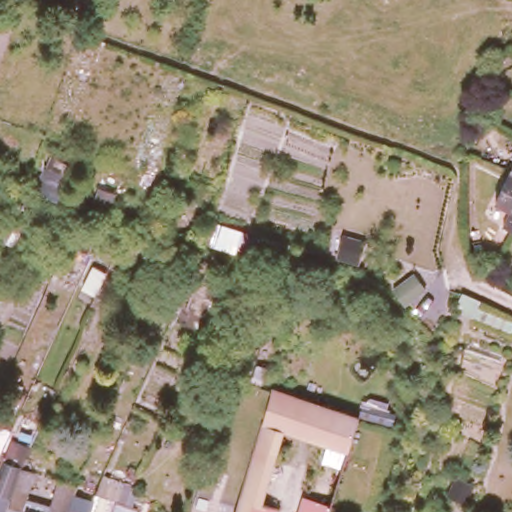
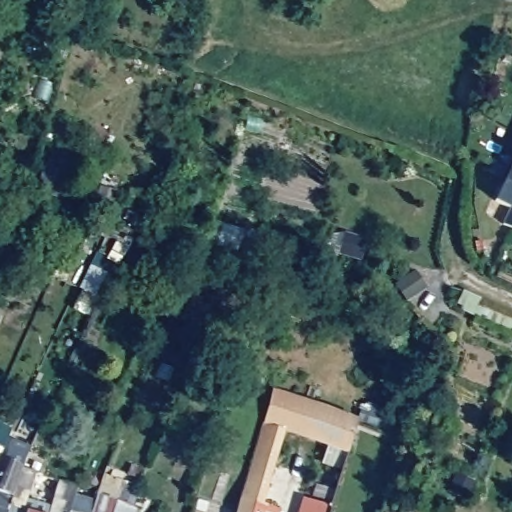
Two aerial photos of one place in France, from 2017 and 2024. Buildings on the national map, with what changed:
unchanged [(309,178),(299,175),(302,167),(312,170),(309,178)]
unchanged [(497,202),(512,171),(512,172),(512,209),(497,202)]
unchanged [(505,226),(512,211),(512,229),(505,226)]
unchanged [(142,230),(130,226),(134,217),(145,221),(142,230)]
unchanged [(150,277),(158,257),(139,250),(145,235),(175,245),(168,261),(160,281),(150,277)]
unchanged [(253,250),(240,250),(240,241),(253,242),(253,250)]
unchanged [(205,246),(202,253),(188,248),(190,242),(205,246)]
unchanged [(230,284),(210,331),(172,314),(194,304),(209,273),(230,284)]
unchanged [(512,319),(512,320),(507,332),(470,316),(476,302),(512,319)]
unchanged [(259,433),(269,397),(357,425),(346,460),(279,439),(259,433)]
unchanged [(364,406),(390,414),(384,431),(358,422),(364,406)]
unchanged [(239,502),(259,433),(279,439),(259,508),(239,502)]
unchanged [(7,510),(11,499),(0,496),(0,460),(6,440),(32,448),(21,469),(19,472),(30,475),(20,512),(7,512),(7,510)]
unchanged [(57,483),(76,489),(69,512),(49,512),(57,483)]
unchanged [(77,509),(82,492),(85,485),(89,487),(87,493),(95,495),(114,501),(112,505),(123,508),(134,512),(85,512),(77,509)]
unchanged [(239,502),(259,508),(271,512),(236,512),(239,502)]
unchanged [(301,502),(310,505),(330,512),(329,512),(298,512),(301,502)]

